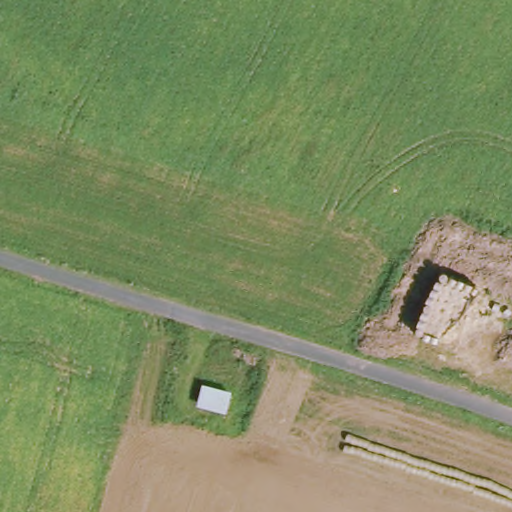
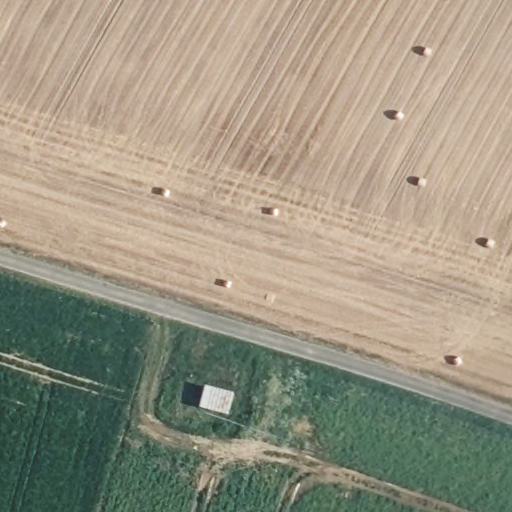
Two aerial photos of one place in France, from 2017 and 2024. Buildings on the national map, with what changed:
unchanged [(194,403),(198,385),(229,390),(226,412),(194,403)]

